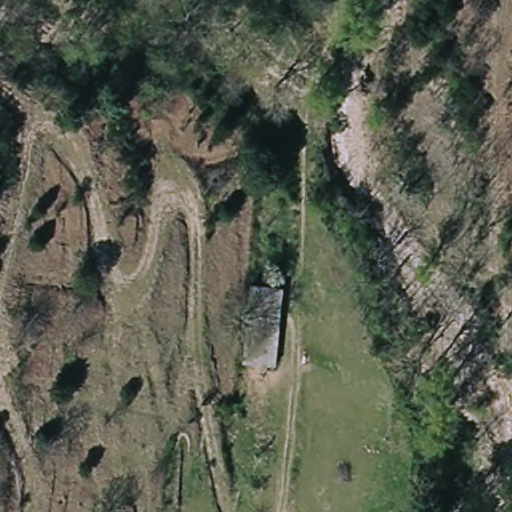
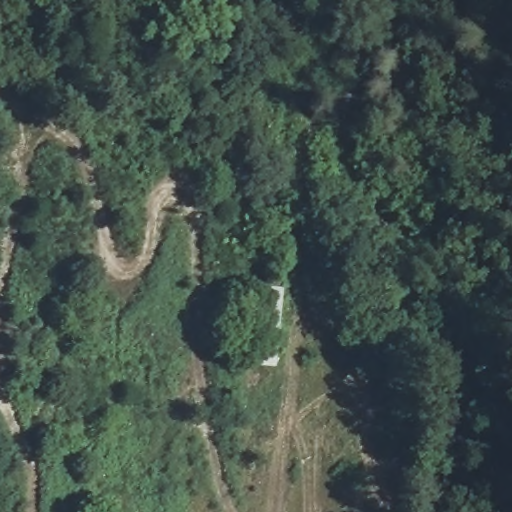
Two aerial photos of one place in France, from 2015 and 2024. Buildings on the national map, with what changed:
unchanged [(282,366),(245,364),(254,284),(287,287),(282,366)]

